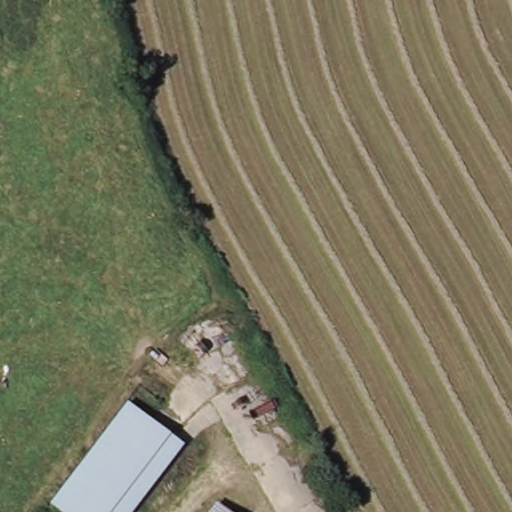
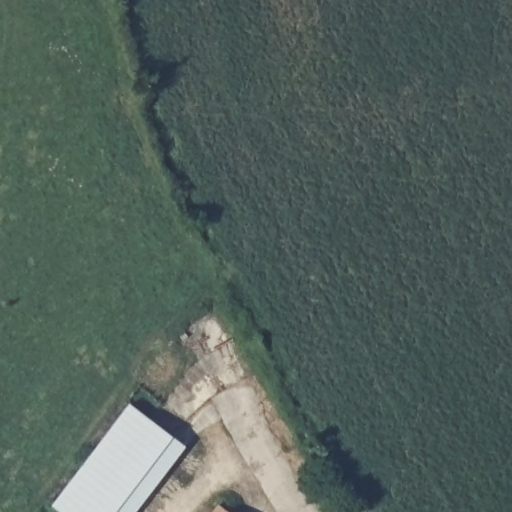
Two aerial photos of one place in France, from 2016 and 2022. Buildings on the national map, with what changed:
unchanged [(127,512),(66,512),(63,510),(139,410),(181,441),(127,512)]
unchanged [(216,512),(223,504),(232,512),(216,512)]

